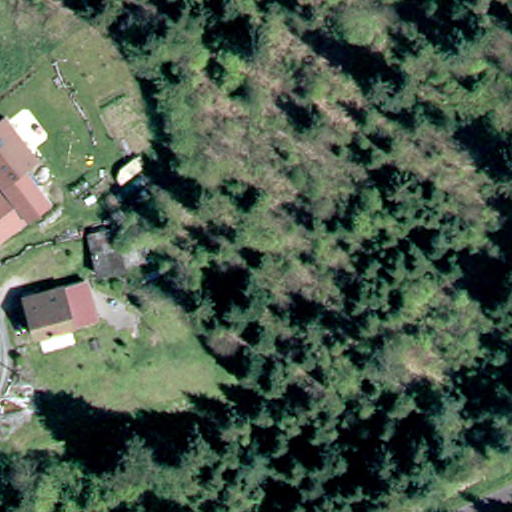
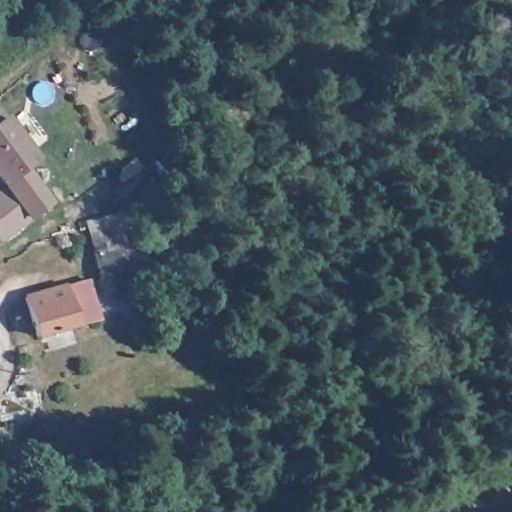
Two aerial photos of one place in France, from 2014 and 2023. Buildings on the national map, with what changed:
unchanged [(26,172),(39,190),(33,195),(30,190),(20,197),(23,202),(18,205),(0,181),(0,131),(8,125),(15,132),(21,127),(26,135),(20,139),(38,163),(26,172)]
unchanged [(9,192),(18,205),(23,202),(20,197),(30,190),(33,195),(39,190),(50,205),(0,238),(0,187),(3,185),(9,192)]
unchanged [(111,226),(117,247),(139,242),(145,263),(99,276),(87,231),(111,226)]
unchanged [(56,297),(55,293),(61,292),(62,296),(85,288),(97,327),(35,346),(23,308),(56,297)]

